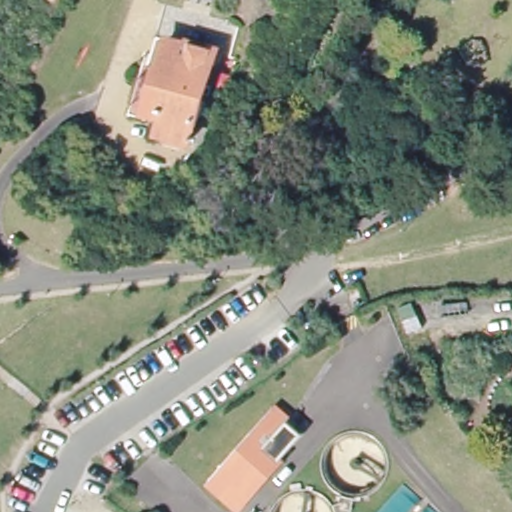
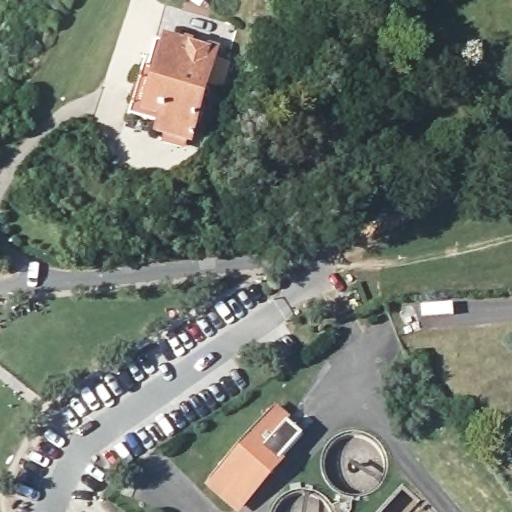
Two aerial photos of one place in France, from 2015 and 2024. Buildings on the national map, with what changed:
unchanged [(186,146),(166,140),(169,134),(162,132),(164,125),(130,114),(147,54),(153,55),(159,35),(219,51),(194,141),(187,139),(186,146)]
unchanged [(196,493),(260,419),(290,446),(264,476),(233,512),(219,512),(196,493)]

